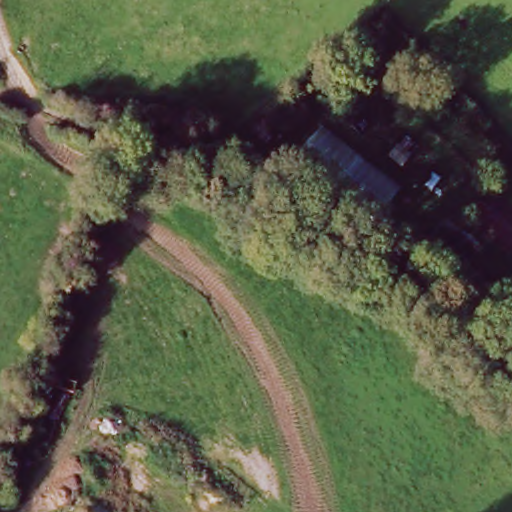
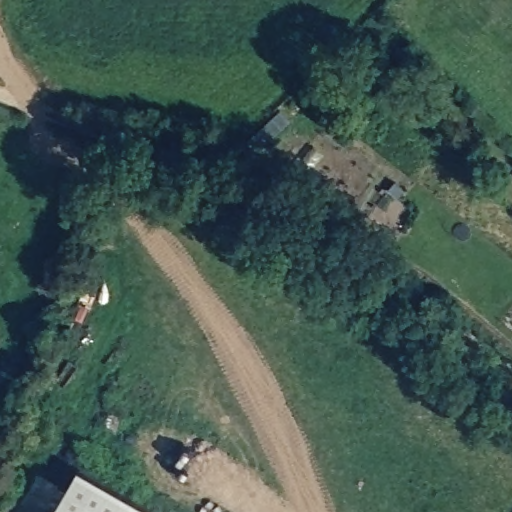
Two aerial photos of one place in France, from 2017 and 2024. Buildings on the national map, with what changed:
new [(80,468),(156,512),(54,512),(80,468)]

